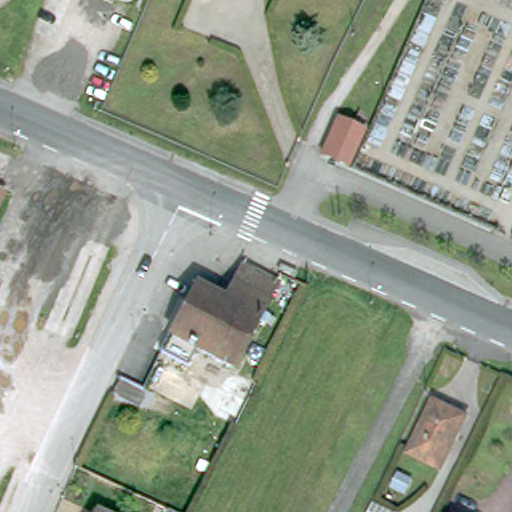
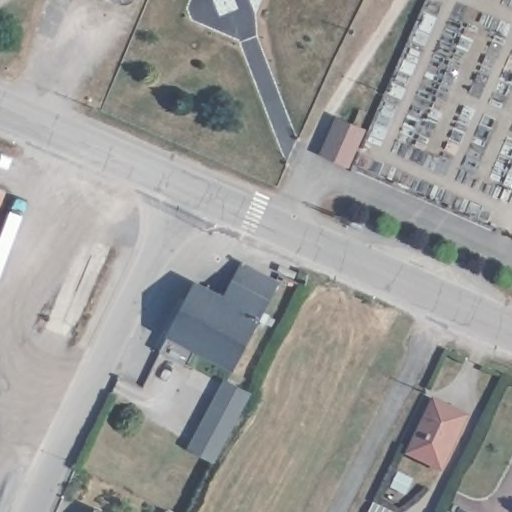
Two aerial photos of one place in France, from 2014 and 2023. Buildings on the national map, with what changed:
unchanged [(121,1),(117,0),(122,0),(121,1)]
unchanged [(347,166),(322,155),(337,120),(362,131),(347,166)]
unchanged [(0,189),(5,191),(0,204),(0,189)]
unchanged [(270,323),(262,319),(237,367),(174,332),(201,281),(231,297),(248,265),(282,282),(267,310),(275,315),(270,323)]
demolished [(227,395),(231,396),(241,375),(258,383),(238,422),(218,412),(227,395)]
new [(222,381),(250,393),(213,460),(186,447),(222,381)]
unchanged [(467,417),(442,469),(409,454),(435,402),(467,417)]
new [(397,512),(370,512),(375,501),(397,512)]
unchanged [(179,512),(175,512),(176,510),(179,512)]
unchanged [(101,512),(101,511),(102,512),(101,512)]

